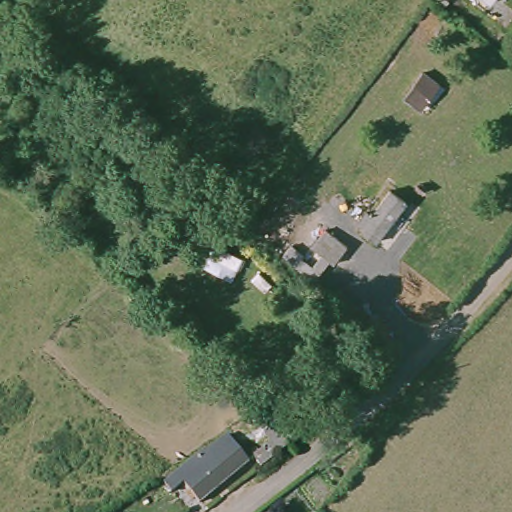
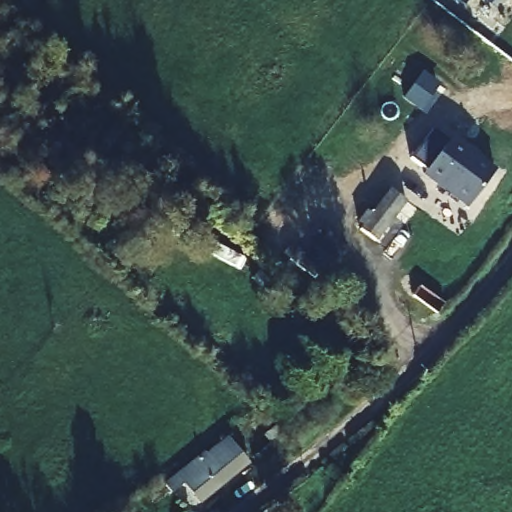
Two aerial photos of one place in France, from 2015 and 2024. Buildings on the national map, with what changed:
unchanged [(489,1),(488,0),(490,0),(489,1)]
unchanged [(424,73),(438,85),(417,109),(404,97),(424,73)]
new [(412,159),(433,131),(448,142),(453,137),(496,169),(466,209),(423,176),(427,171),(412,159)]
unchanged [(363,226),(359,223),(369,211),(374,214),(394,188),(409,201),(376,242),(361,228),(363,226)]
unchanged [(336,284),(317,267),(332,250),(351,267),(336,284)]
unchanged [(294,265),(306,276),(296,287),(284,276),(294,265)]
unchanged [(253,459),(271,444),(264,436),(271,431),(274,434),(289,447),(261,468),(253,459)]
unchanged [(203,446),(209,453),(225,441),(246,467),(198,502),(181,481),(169,491),(160,482),(163,479),(161,476),(203,446)]

